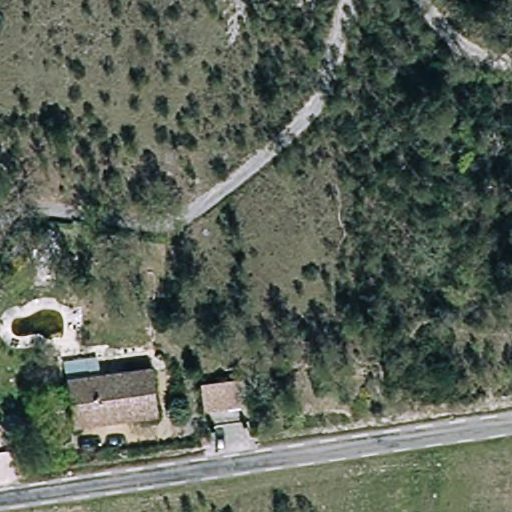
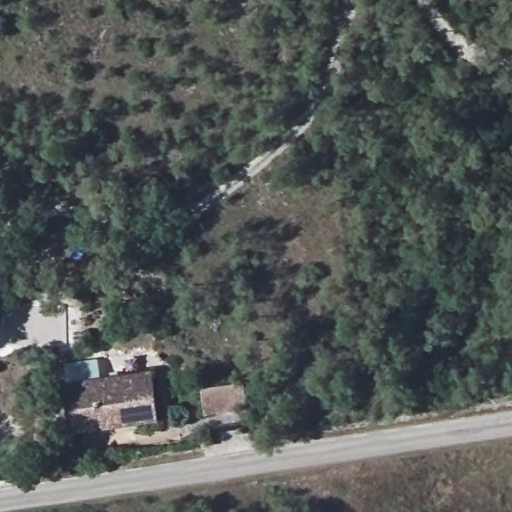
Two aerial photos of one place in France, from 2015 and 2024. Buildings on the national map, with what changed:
unchanged [(69,385),(156,374),(156,378),(160,422),(74,432),(69,385)]
unchanged [(252,413),(208,417),(206,390),(250,387),(252,413)]

